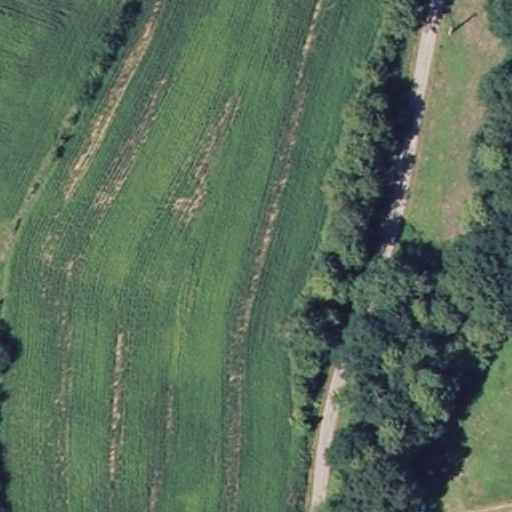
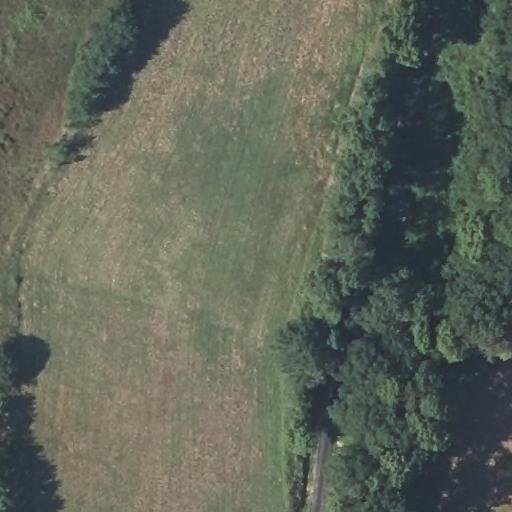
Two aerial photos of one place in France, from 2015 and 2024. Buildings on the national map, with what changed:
unchanged [(411,498),(405,512),(385,512),(393,492),(411,498)]

